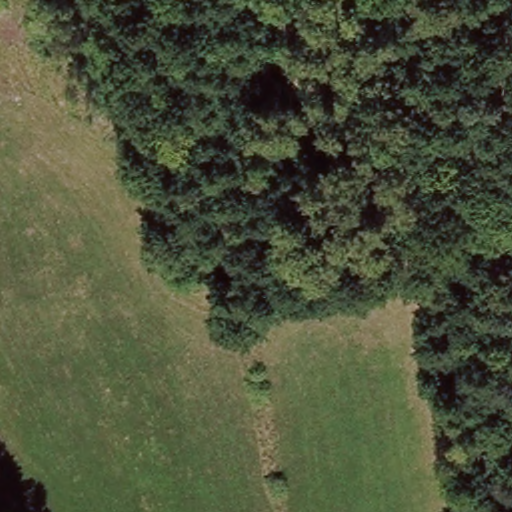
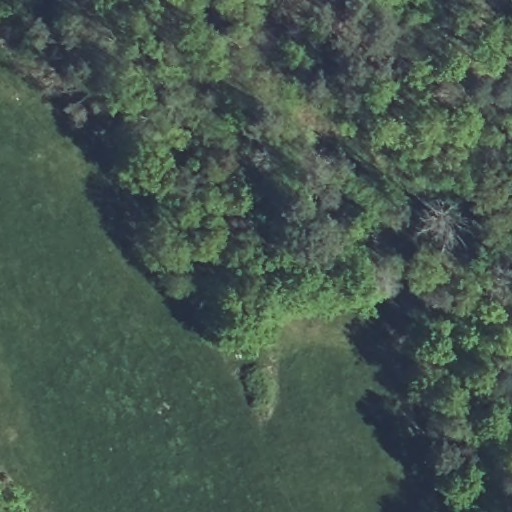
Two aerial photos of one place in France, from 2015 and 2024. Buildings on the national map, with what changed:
[]

